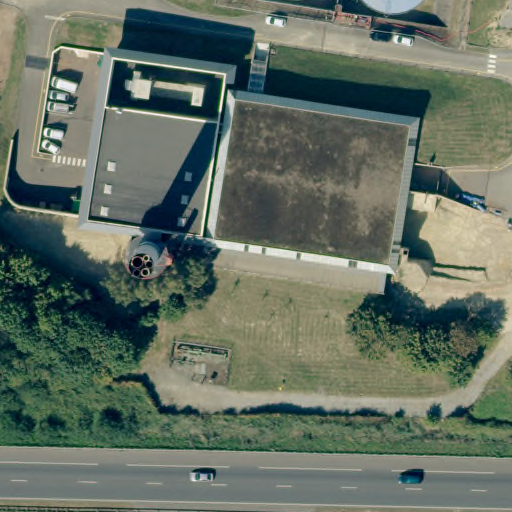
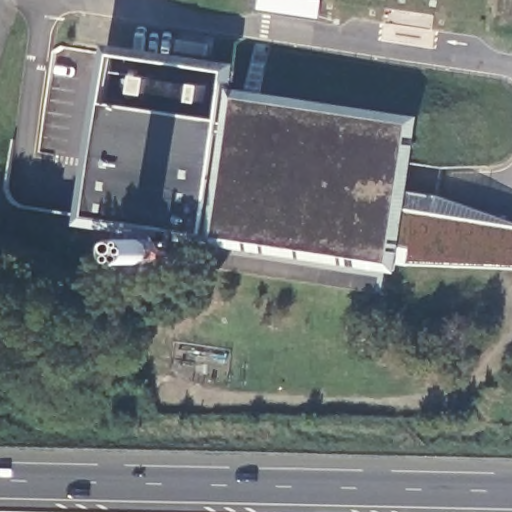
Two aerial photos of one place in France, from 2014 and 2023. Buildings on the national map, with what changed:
unchanged [(410,119),(388,257),(383,287),(204,259),(175,255),(168,254),(167,267),(147,263),(138,262),(125,260),(132,217),(128,217),(89,210),(102,120),(111,70),(115,46),(132,49),(228,64),(225,82),(237,84),(236,91),(272,97),(410,119)]
new [(387,264),(388,257),(400,187),(410,192),(438,196),(512,222),(512,268),(397,265),(387,264)]

